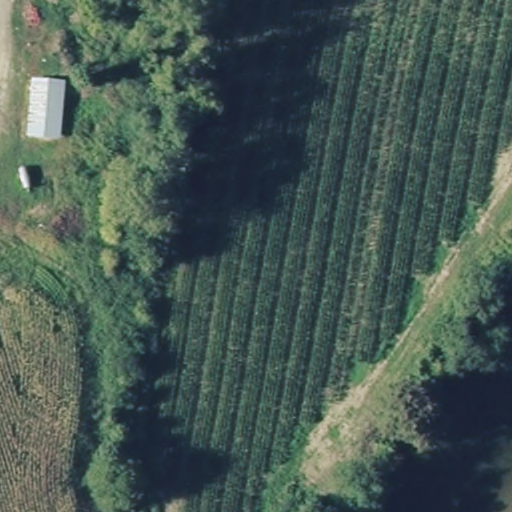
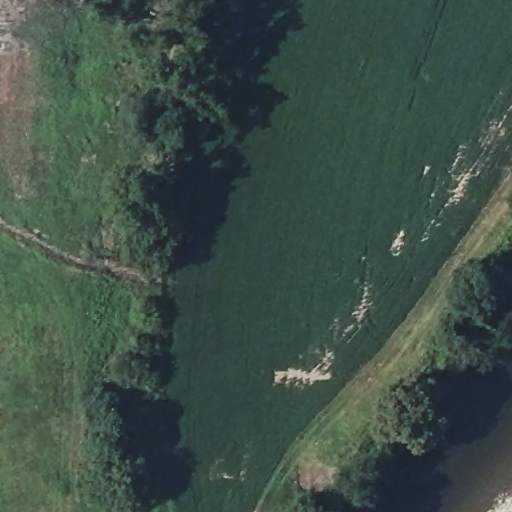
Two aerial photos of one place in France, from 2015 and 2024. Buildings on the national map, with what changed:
demolished [(65,82),(61,138),(28,137),(31,79),(65,82)]
unchanged [(55,144),(51,200),(18,199),(21,141),(55,144)]

